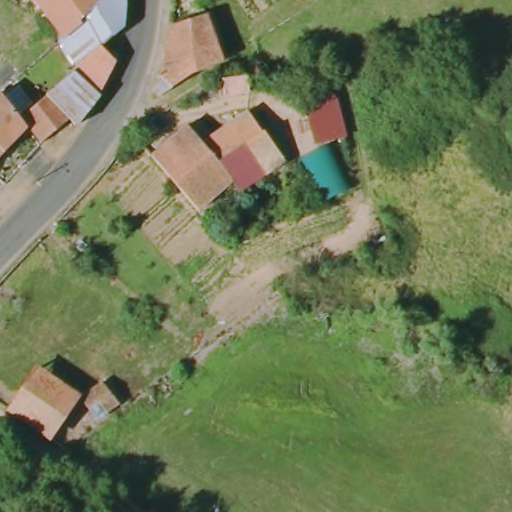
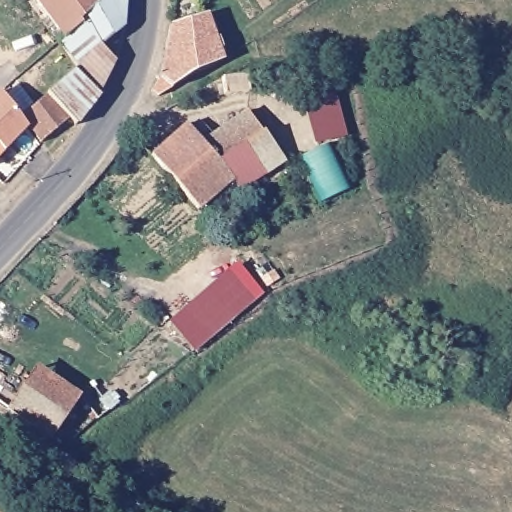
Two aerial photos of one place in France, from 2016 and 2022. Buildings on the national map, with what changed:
unchanged [(29,0),(86,0),(52,29),(29,0)]
unchanged [(111,0),(108,27),(91,42),(65,64),(43,39),(52,29),(86,0),(111,0)]
unchanged [(181,80),(155,99),(151,94),(160,55),(164,30),(200,14),(221,54),(181,80)]
unchanged [(59,70),(61,69),(65,64),(91,42),(102,54),(91,83),(83,96),(67,120),(62,114),(33,141),(12,115),(23,103),(59,70)]
unchanged [(243,93),(221,99),(201,112),(191,99),(219,84),(241,79),(243,93)]
unchanged [(316,80),(334,98),(340,132),(312,137),(301,96),(304,79),(316,80)]
unchanged [(7,84),(23,103),(12,115),(11,114),(9,115),(18,129),(0,149),(0,90),(7,84)]
unchanged [(170,139),(182,128),(196,125),(207,138),(238,112),(252,128),(255,124),(259,128),(255,133),(217,165),(228,178),(227,180),(192,214),(147,161),(170,139)]
unchanged [(228,178),(217,165),(255,133),(278,158),(239,193),(227,180),(228,178)]
new [(350,187),(317,202),(295,156),(329,143),(350,187)]
new [(168,323),(236,263),(263,294),(195,352),(168,323)]
unchanged [(0,414),(0,413),(26,374),(65,400),(40,440),(0,414)]
unchanged [(86,419),(71,399),(89,385),(105,404),(86,419)]

